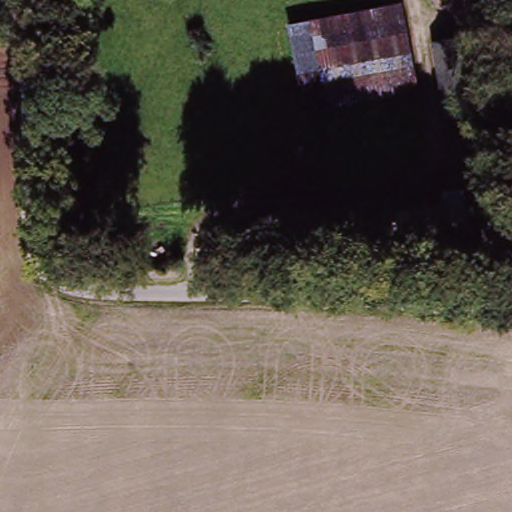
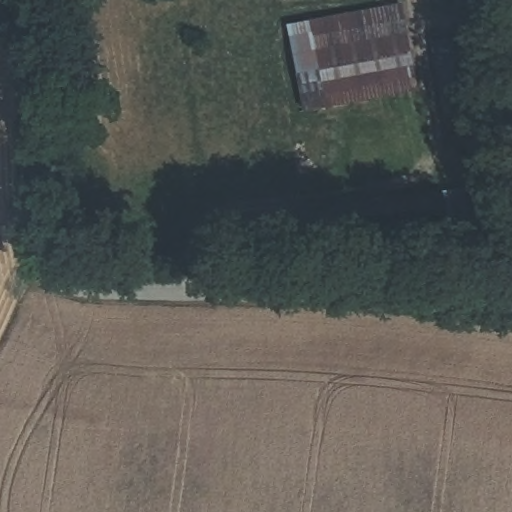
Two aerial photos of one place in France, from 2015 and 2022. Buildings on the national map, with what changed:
unchanged [(283,24),(399,5),(415,89),(299,110),(283,24)]
unchanged [(442,122),(431,40),(466,37),(477,119),(442,122)]
unchanged [(458,167),(464,207),(417,211),(414,172),(458,167)]
unchanged [(367,219),(356,220),(278,229),(229,236),(223,197),(265,191),(414,172),(417,211),(371,217),(367,219)]
unchanged [(367,219),(371,217),(374,219),(377,220),(380,221),(382,222),(385,225),(387,227),(388,229),(390,232),(392,235),(392,237),(393,240),(394,244),(394,246),(394,250),(393,252),(392,255),(392,258),(390,260),(389,263),(387,265),(385,267),(383,268),(380,270),(378,271),(376,272),(373,273),(370,273),(367,274),(365,273),(362,273),(360,272),(357,271),(355,270),(352,269),(350,267),(347,265),(345,262),(344,260),(342,257),(342,255),(340,252),(340,249),(340,246),(340,243),(340,240),(341,237),(342,235),(343,232),(345,230),(347,227),(348,225),(351,223),(353,221),(356,220),(367,219)]

